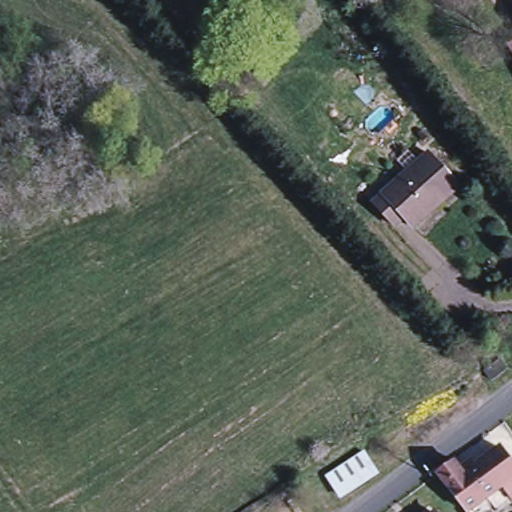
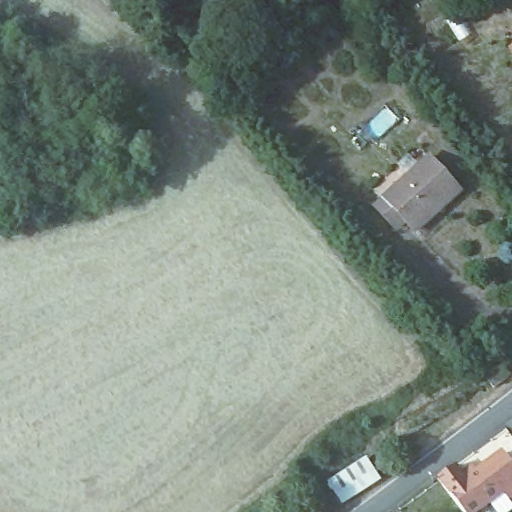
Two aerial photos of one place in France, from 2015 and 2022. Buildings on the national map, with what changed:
unchanged [(394,229),(375,207),(429,158),(459,191),(414,231),(404,220),(394,229)]
unchanged [(502,366),(509,376),(493,388),(485,377),(502,366)]
unchanged [(365,456),(378,479),(344,501),(330,478),(365,456)]
unchanged [(488,506),(484,509),(465,482),(502,456),(512,470),(512,512),(493,512),(488,506)]
unchanged [(484,509),(479,512),(462,512),(437,479),(454,467),(465,482),(484,509)]

